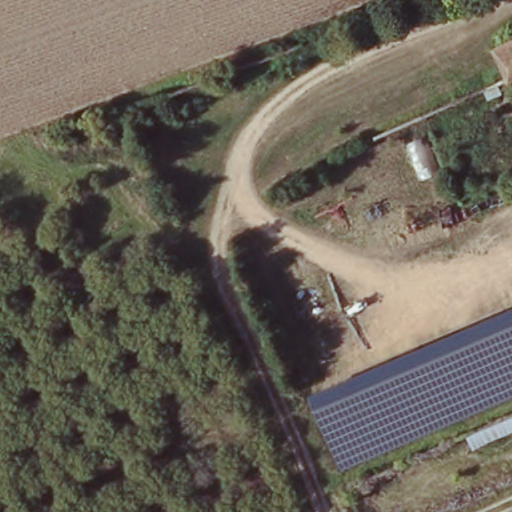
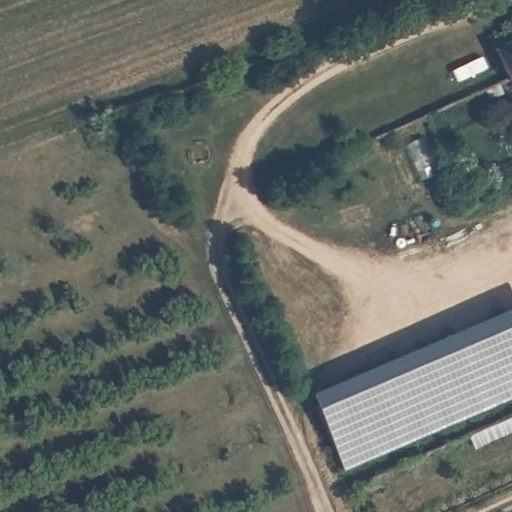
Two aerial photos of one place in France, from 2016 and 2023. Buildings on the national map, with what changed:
unchanged [(498,46),(512,39),(512,79),(498,46)]
unchanged [(339,472),(308,395),(512,306),(512,397),(339,472)]

